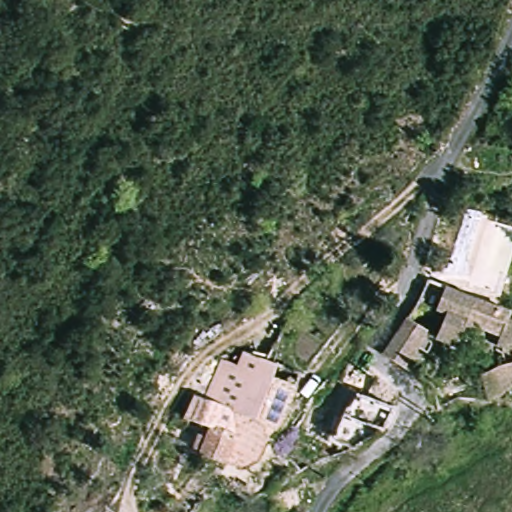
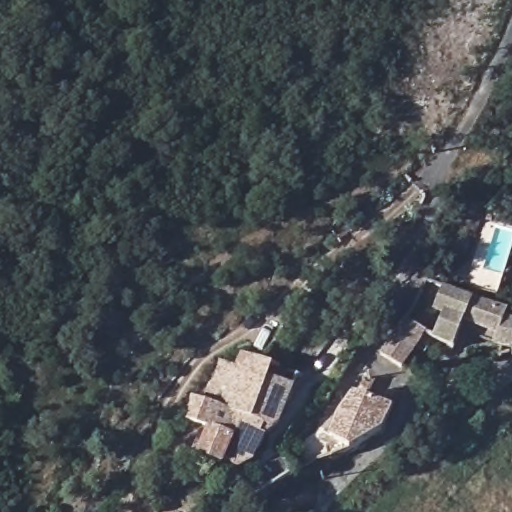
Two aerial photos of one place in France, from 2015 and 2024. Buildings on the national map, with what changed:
unchanged [(378,359),(425,283),(507,315),(504,323),(512,326),(512,337),(509,352),(487,348),(466,341),(454,336),(449,349),(422,339),(399,372),(378,359)]
unchanged [(228,411),(198,399),(216,361),(229,367),(236,351),(251,357),(246,371),(228,411)]
unchanged [(469,381),(488,369),(506,364),(512,375),(512,382),(484,405),(469,381)]
unchanged [(228,411),(246,371),(291,385),(281,416),(264,434),(261,435),(241,427),(231,452),(222,452),(219,462),(198,455),(206,431),(181,420),(191,396),(198,399),(228,411)]
new [(339,455),(332,452),(334,448),(326,445),(348,391),(393,409),(386,426),(360,446),(356,444),(354,449),(344,445),(339,455)]

